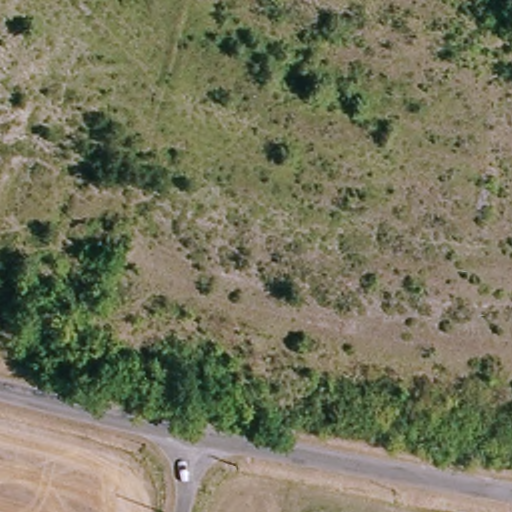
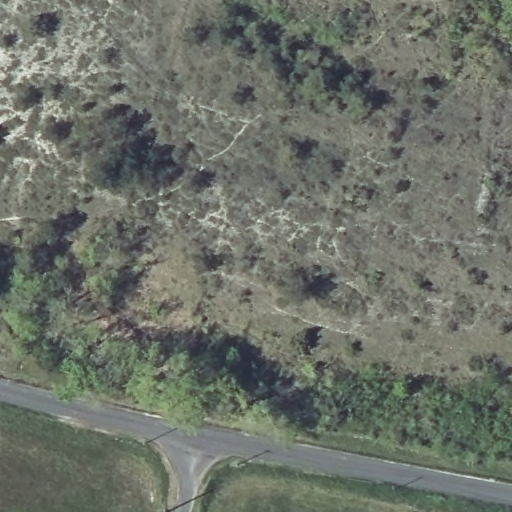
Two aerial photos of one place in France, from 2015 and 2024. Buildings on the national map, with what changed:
[]

